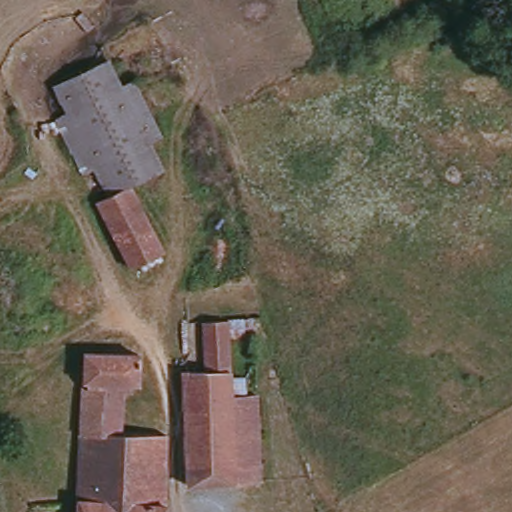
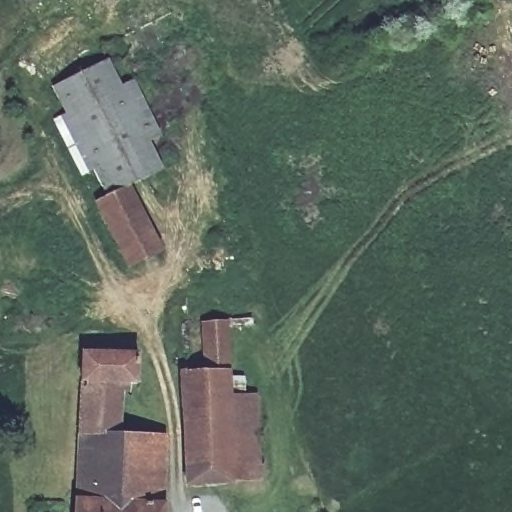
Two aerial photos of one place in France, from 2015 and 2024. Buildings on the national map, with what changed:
unchanged [(93,168),(80,173),(59,118),(73,112),(60,82),(124,58),(135,88),(147,83),(159,114),(148,119),(169,175),(133,189),(105,200),(93,168)]
unchanged [(159,258),(119,274),(91,205),(105,200),(133,189),(159,258)]
unchanged [(180,369),(194,369),(192,325),(251,322),(252,340),(230,341),(234,400),(262,399),(262,486),(184,483),(180,380),(180,369)]
unchanged [(76,394),(76,356),(133,356),(133,395),(123,395),(76,394)]
unchanged [(120,441),(76,439),(76,394),(123,395),(120,441)]
unchanged [(76,439),(120,441),(165,443),(165,512),(76,512),(76,439)]

